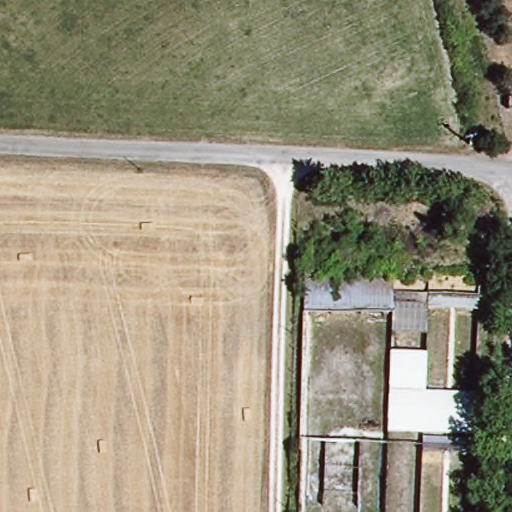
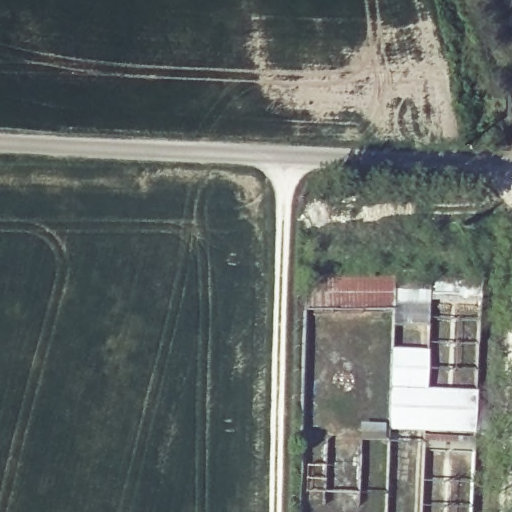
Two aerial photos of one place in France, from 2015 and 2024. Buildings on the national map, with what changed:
unchanged [(361,264),(366,284),(397,288),(391,311),(308,309),(311,262),(361,264)]
unchanged [(480,289),(480,307),(428,306),(427,331),(390,329),(391,311),(397,288),(480,289)]
unchanged [(390,350),(429,352),(427,390),(475,392),(472,448),(421,445),(422,432),(387,430),(390,350)]

